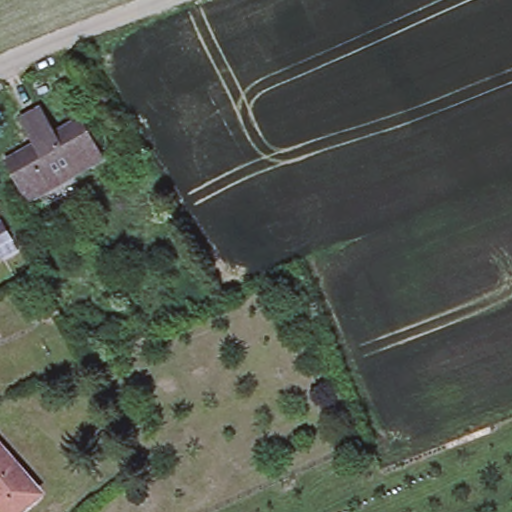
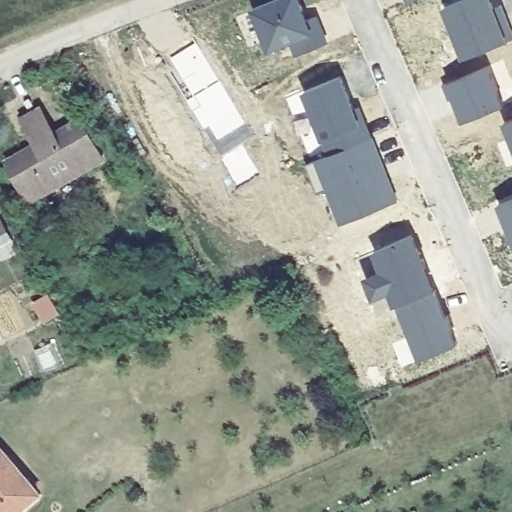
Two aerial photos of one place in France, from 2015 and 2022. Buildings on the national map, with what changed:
new [(297,0),(305,22),(317,17),(325,43),(295,56),(291,45),(265,54),(250,12),(281,0),(297,0)]
new [(403,0),(416,0),(405,5),(403,0)]
new [(489,0),(491,10),(500,7),(512,34),(512,41),(459,62),(441,12),(469,0),(489,0)]
new [(196,43),(246,125),(217,141),(210,129),(205,131),(192,112),(198,108),(170,59),(196,43)]
new [(490,66),(503,107),(460,125),(450,99),(448,101),(443,87),(490,66)]
new [(340,80),(351,114),(361,110),(395,204),(338,227),(314,165),(325,160),(301,96),(340,80)]
unchanged [(53,134),(81,117),(105,157),(31,198),(8,160),(34,145),(20,120),(39,110),(53,134)]
new [(512,155),(502,127),(512,123),(512,155)]
new [(512,251),(496,208),(512,201),(512,251)]
unchanged [(4,212),(23,247),(0,260),(0,214),(4,212)]
new [(412,237),(455,347),(416,363),(395,310),(391,311),(387,296),(371,303),(363,283),(378,277),(370,256),(412,237)]
unchanged [(36,302),(50,294),(63,286),(75,305),(61,313),(47,322),(36,302)]
unchanged [(40,495),(19,512),(0,512),(0,447),(40,495)]

